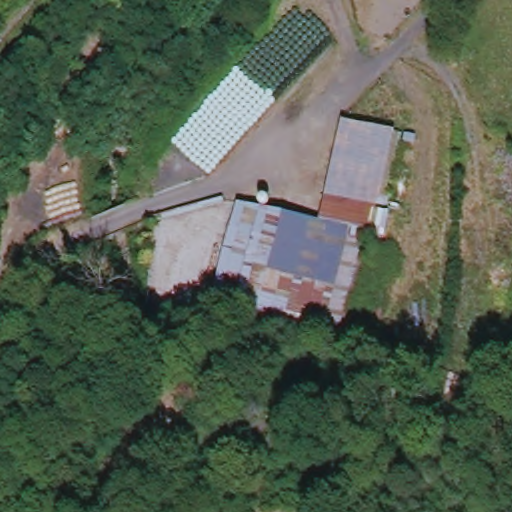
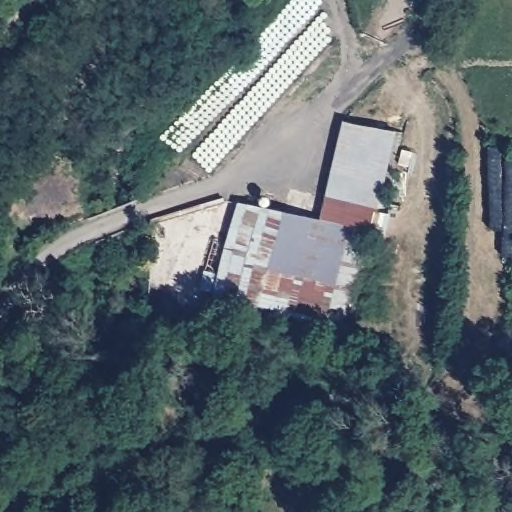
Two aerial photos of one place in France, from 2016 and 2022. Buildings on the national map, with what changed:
unchanged [(237,200),(321,217),(344,120),(399,132),(378,212),(391,215),(386,242),(370,239),(339,341),(210,313),(237,200)]

